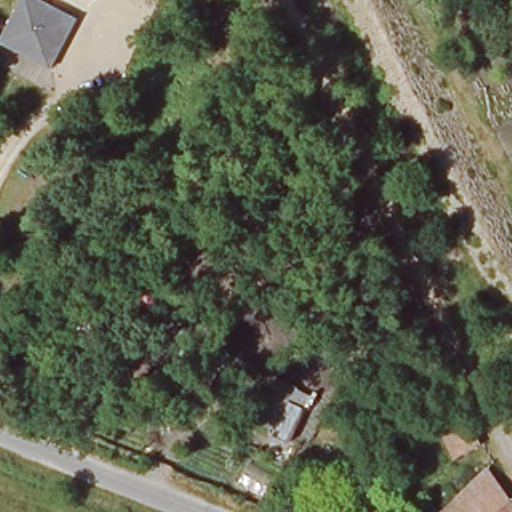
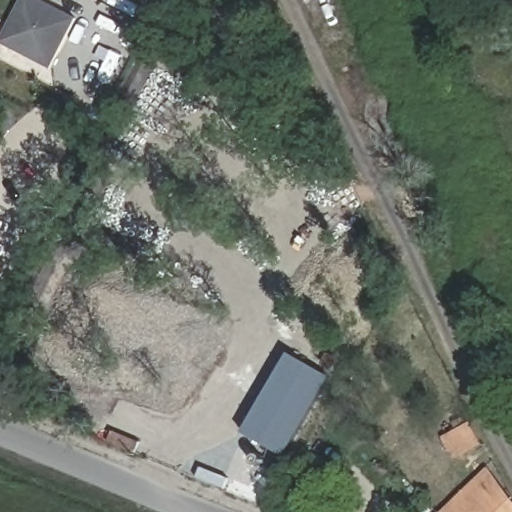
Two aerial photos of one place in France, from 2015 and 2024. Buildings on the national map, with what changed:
unchanged [(0,45),(0,39),(21,0),(42,0),(80,19),(52,71),(0,45)]
new [(146,0),(151,0),(150,2),(146,0)]
new [(8,265),(0,281),(0,261),(8,265)]
new [(330,376),(286,455),(244,433),(288,353),(330,376)]
unchanged [(482,445),(452,460),(443,441),(470,426),(482,445)]
unchanged [(489,476),(495,483),(512,501),(512,512),(463,512),(472,503),(466,498),(489,476)]

